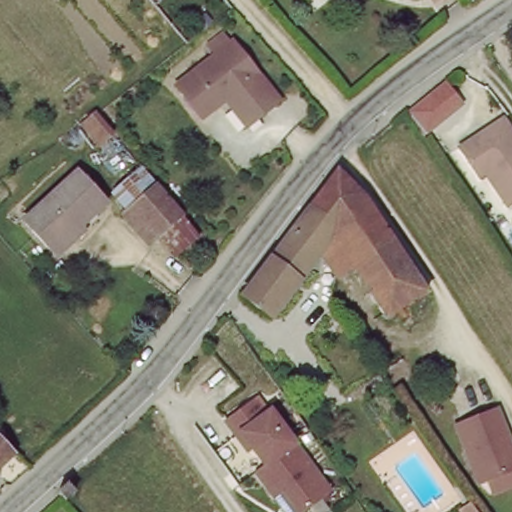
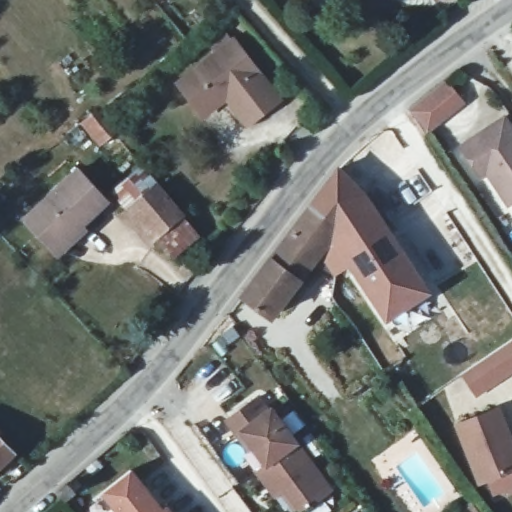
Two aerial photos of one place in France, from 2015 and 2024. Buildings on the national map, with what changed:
unchanged [(242,115),(233,104),(210,123),(183,92),(220,60),(212,51),(227,38),(235,47),(237,46),(286,103),(264,121),(255,130),(242,115)]
unchanged [(448,79),(467,102),(430,133),(410,109),(448,79)]
unchanged [(111,137),(103,143),(84,123),(92,116),(111,137)]
unchanged [(476,181),(458,152),(500,125),(512,144),(512,207),(511,207),(505,211),(482,178),(476,181)]
unchanged [(364,187),(427,289),(426,290),(387,319),(344,254),(346,246),(339,237),(347,229),(312,201),(342,164),(364,187)]
unchanged [(72,244),(61,255),(54,247),(27,220),(39,208),(59,190),(80,170),(99,190),(109,200),(85,224),(89,229),(72,244)]
unchanged [(129,213),(158,185),(161,188),(184,211),(154,238),(129,213)]
unchanged [(347,229),(339,237),(346,246),(344,254),(335,240),(272,309),(246,284),(303,211),(312,201),(347,229)]
unchanged [(184,211),(201,229),(173,257),(154,238),(184,211)]
new [(476,397),(461,374),(512,338),(512,372),(476,397)]
unchanged [(301,512),(287,490),(275,497),(259,473),(264,464),(227,420),(256,396),(269,412),(274,408),(337,490),(308,512),(301,512)]
unchanged [(455,422),(495,408),(508,438),(512,449),(512,466),(477,479),(455,422)]
unchanged [(15,451),(0,464),(0,438),(15,451)]
new [(116,512),(100,492),(133,467),(164,508),(168,504),(174,512),(116,512)]
unchanged [(461,512),(476,501),(485,512),(461,512)]

